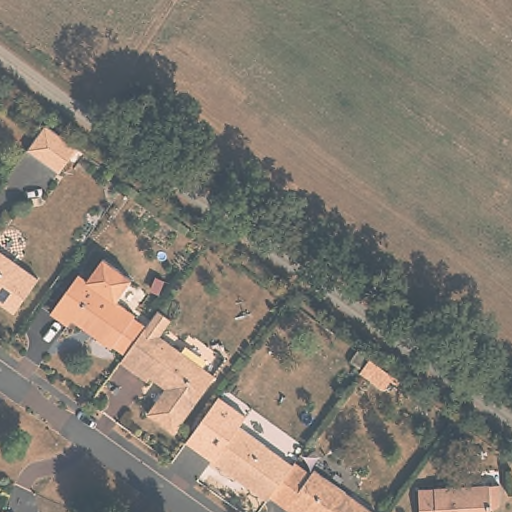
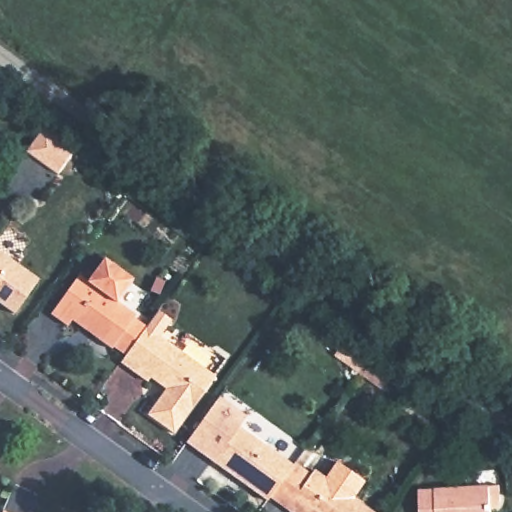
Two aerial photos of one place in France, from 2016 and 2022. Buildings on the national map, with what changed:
unchanged [(45,124),(53,130),(77,147),(77,148),(59,173),(27,150),(45,124)]
unchanged [(0,303),(0,252),(38,279),(14,313),(0,303)]
unchanged [(113,351),(111,353),(71,324),(67,331),(50,319),(78,279),(87,286),(104,264),(132,284),(116,306),(135,320),(134,323),(146,331),(134,348),(125,360),(113,351)]
unchanged [(166,393),(149,382),(146,386),(120,367),(125,360),(134,348),(146,331),(157,315),(169,324),(157,340),(214,381),(173,438),(147,419),(166,393)]
unchanged [(368,358),(393,376),(383,389),(359,372),(359,371),(368,358)]
unchanged [(273,496),(267,505),(197,455),(230,410),(246,421),(238,431),(292,470),(273,496)]
unchanged [(313,469),(372,512),(291,512),(286,508),(313,469)]
unchanged [(512,489),(512,509),(512,510),(510,511),(509,512),(434,512),(433,493),(512,489)]

